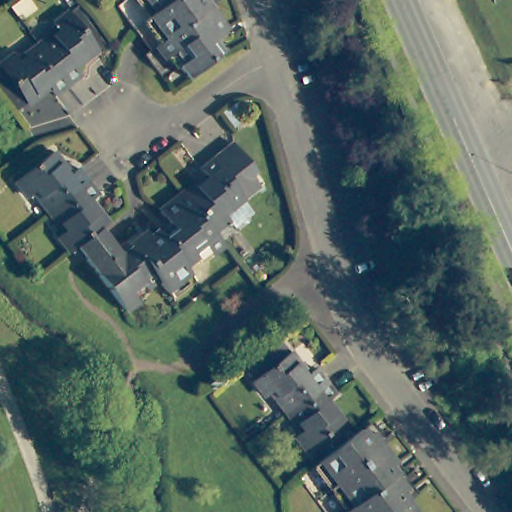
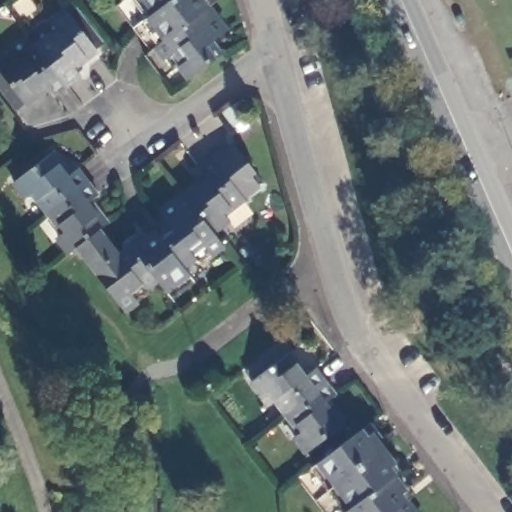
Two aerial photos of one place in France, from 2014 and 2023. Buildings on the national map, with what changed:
unchanged [(203,1),(206,5),(226,32),(212,45),(220,56),(188,80),(176,66),(180,64),(171,52),(166,56),(155,44),(161,39),(145,17),(151,12),(142,0),(205,0),(203,1)]
unchanged [(37,45),(54,33),(49,26),(68,13),(98,51),(76,67),(82,76),(70,84),(37,45)]
unchanged [(55,95),(49,88),(27,103),(0,68),(0,64),(23,47),(28,52),(37,45),(70,84),(55,95)]
unchanged [(206,228),(195,214),(178,191),(200,173),(192,164),(225,138),(249,169),(245,172),(253,182),(237,194),(248,208),(228,224),(222,216),(206,228)]
unchanged [(31,196),(24,201),(12,185),(50,154),(67,175),(77,169),(87,182),(45,214),(31,196)]
unchanged [(73,248),(72,250),(67,253),(65,255),(53,238),(59,233),(45,214),(87,182),(96,195),(87,202),(103,224),(97,229),(73,248)]
unchanged [(101,233),(105,240),(117,254),(124,249),(120,244),(139,230),(144,236),(153,227),(158,233),(166,226),(153,209),(178,191),(195,214),(206,228),(215,239),(218,243),(206,253),(199,245),(189,252),(192,257),(180,265),(187,275),(182,279),(180,277),(162,290),(156,282),(143,290),(140,286),(131,293),(137,301),(123,310),(114,298),(104,285),(95,273),(84,258),(74,249),(73,248),(97,229),(101,233)]
unchanged [(274,422),(259,402),(264,397),(252,381),(288,352),(306,373),(317,366),(328,380),(274,422)]
unchanged [(328,380),(338,392),(327,401),(344,423),(307,452),(295,438),(289,442),(274,422),(328,380)]
unchanged [(369,438),(382,455),(394,470),(390,473),(406,494),(400,498),(406,506),(411,512),(347,512),(332,492),(314,468),(359,434),(365,441),(369,438)]

